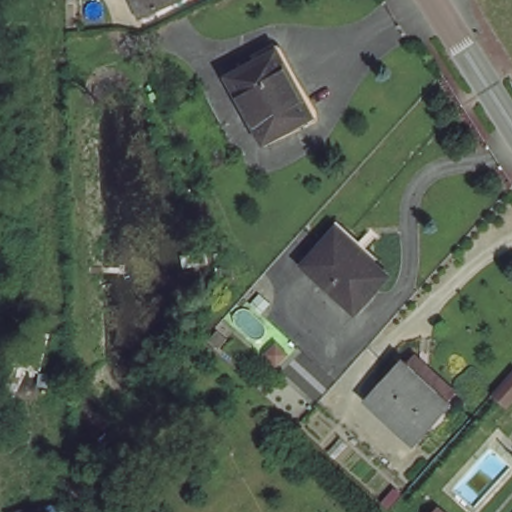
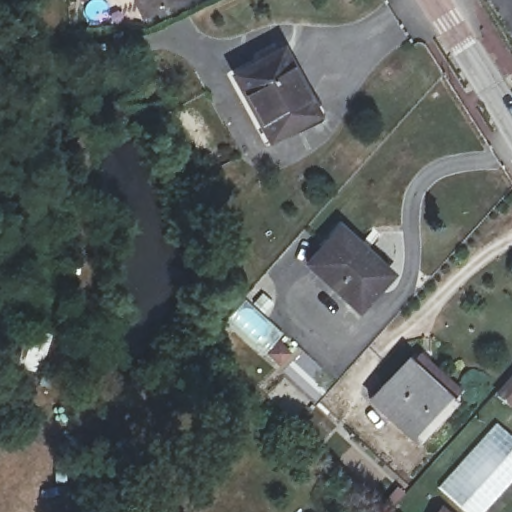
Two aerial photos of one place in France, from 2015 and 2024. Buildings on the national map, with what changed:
unchanged [(138,0),(160,0),(143,10),(138,0)]
unchanged [(265,136),(227,74),(271,46),(311,110),(265,136)]
unchanged [(355,303),(305,257),(338,221),(387,267),(355,303)]
unchanged [(23,322),(47,328),(38,368),(10,360),(23,322)]
unchanged [(424,436),(377,393),(409,356),(457,400),(424,436)]
unchanged [(512,400),(509,404),(496,393),(512,376),(512,400)]
new [(512,437),(512,482),(484,512),(466,512),(438,487),(495,422),(512,437)]
unchanged [(450,500),(464,512),(440,512),(450,500)]

